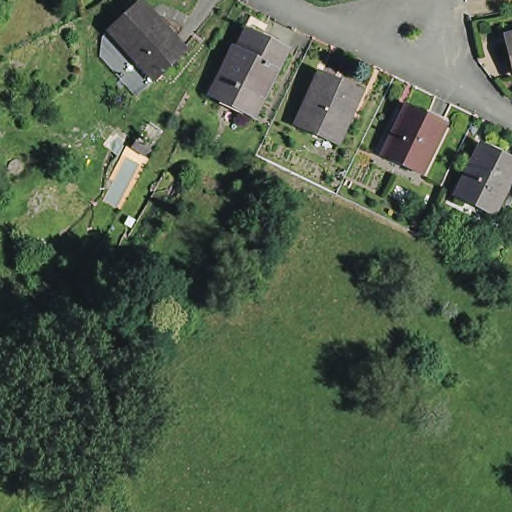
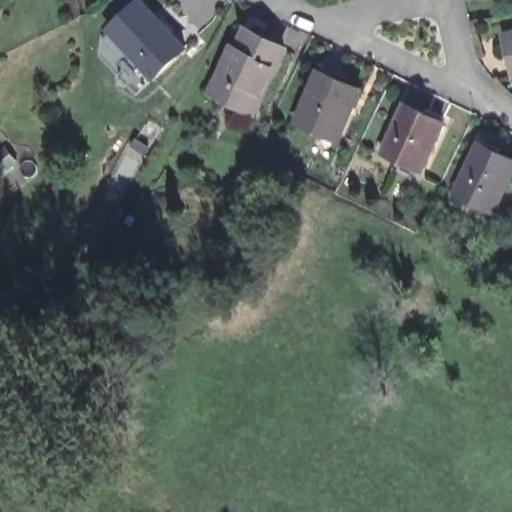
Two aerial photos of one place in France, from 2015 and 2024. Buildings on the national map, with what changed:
unchanged [(150,82),(105,32),(138,2),(177,48),(182,53),(158,74),(150,82)]
unchanged [(503,45),(511,43),(507,29),(512,27),(512,67),(510,67),(503,45)]
unchanged [(209,90),(238,28),(281,48),(251,110),(209,90)]
unchanged [(337,140),(297,119),(321,69),(362,89),(337,140)]
unchanged [(420,171),(384,152),(408,104),(445,122),(420,171)]
unchanged [(452,187),(476,138),(512,157),(512,161),(490,206),(452,187)]

